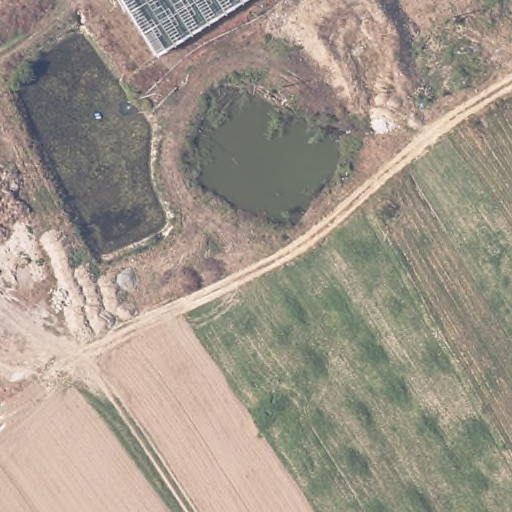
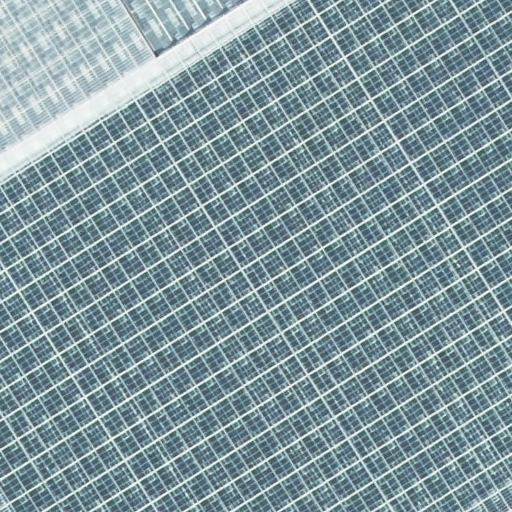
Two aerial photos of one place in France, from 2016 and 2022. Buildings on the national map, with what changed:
unchanged [(0,152),(0,0),(119,0),(154,56),(0,152)]
new [(163,49),(239,0),(512,0),(512,512),(0,512),(0,152),(154,56),(163,49)]
unchanged [(131,0),(239,0),(163,49),(131,0)]

